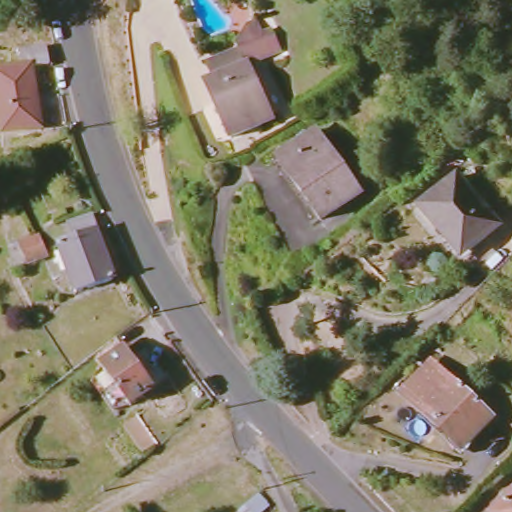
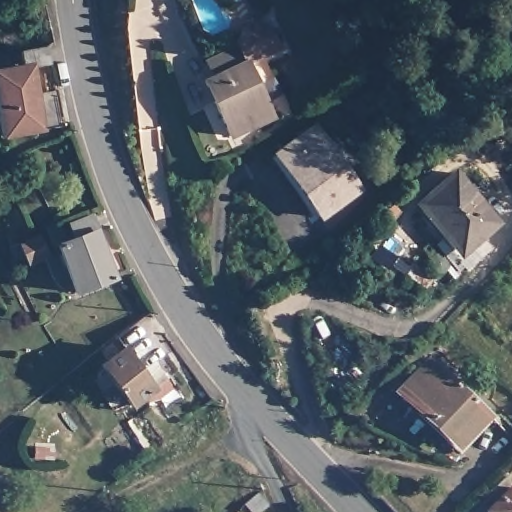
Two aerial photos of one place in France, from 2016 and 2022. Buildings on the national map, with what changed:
unchanged [(215,75),(204,58),(233,43),(247,20),(258,15),(265,29),(277,25),(283,48),(249,62),(275,121),(228,141),(200,81),(215,75)]
unchanged [(43,48),(46,61),(26,66),(23,50),(43,48)]
unchanged [(40,128),(1,136),(0,130),(0,71),(26,66),(40,128)]
unchanged [(325,218),(279,154),(317,125),(362,188),(325,218)]
unchanged [(462,253),(420,204),(457,173),(498,223),(462,253)]
unchanged [(79,290),(61,243),(77,235),(72,223),(93,215),(115,275),(79,290)]
unchanged [(30,263),(22,245),(41,236),(48,255),(30,263)]
unchanged [(107,364),(128,346),(131,350),(144,338),(175,375),(137,405),(107,364)]
unchanged [(462,446),(405,395),(436,363),(491,414),(462,446)]
unchanged [(512,493),(512,512),(494,512),(512,493)]

